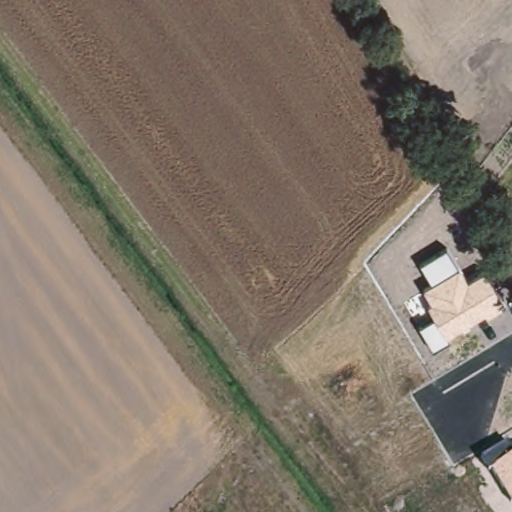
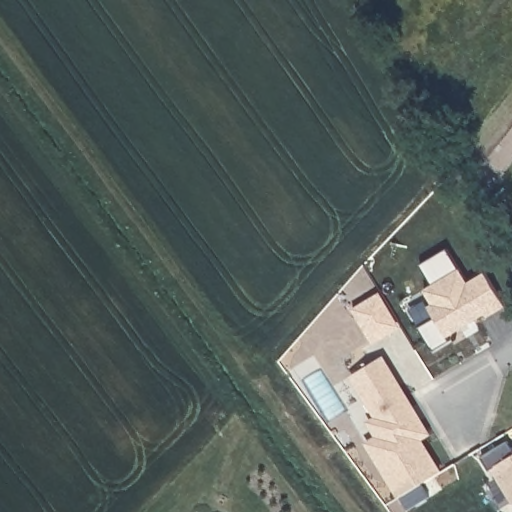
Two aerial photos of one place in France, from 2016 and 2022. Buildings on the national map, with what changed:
unchanged [(433,350),(420,326),(435,317),(428,306),(432,303),(424,289),(433,284),(422,265),(448,250),(469,281),(486,271),(505,307),(487,318),(485,314),(448,337),(450,341),(433,350)]
new [(398,498),(364,442),(374,437),(366,421),(373,417),(350,375),(383,355),(431,435),(423,440),(441,471),(398,498)]
unchanged [(511,502),(492,469),(490,470),(482,456),(508,442),(512,450),(512,502),(511,502)]

